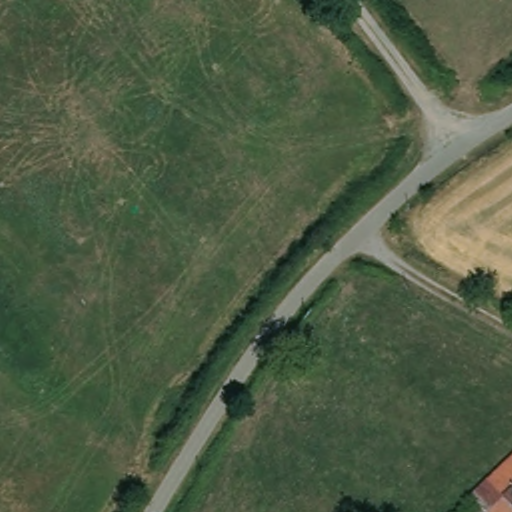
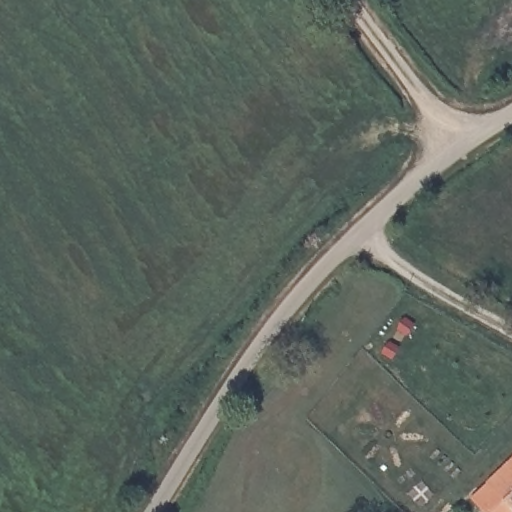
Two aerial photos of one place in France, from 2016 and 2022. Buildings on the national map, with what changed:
unchanged [(493,475),(512,459),(512,512),(490,512),(473,493),(493,475)]

